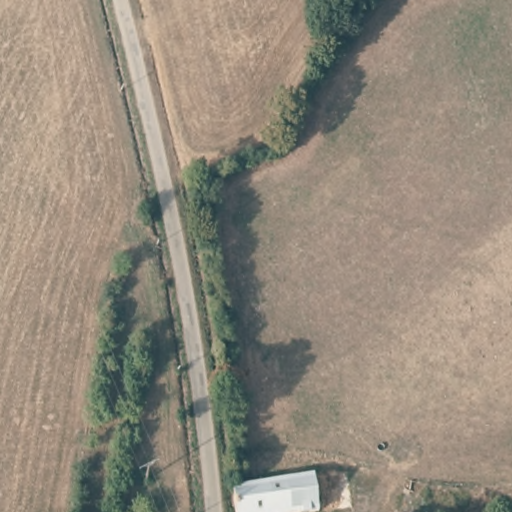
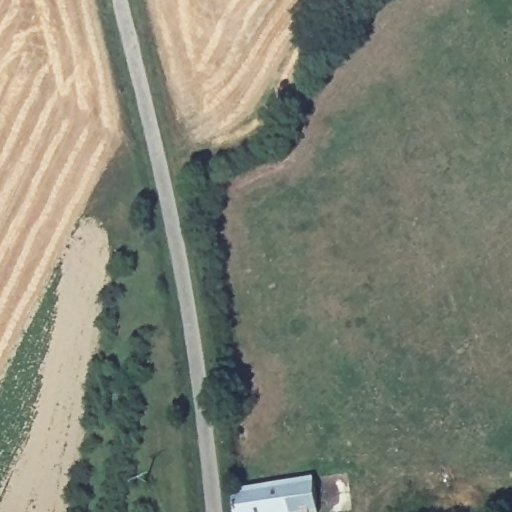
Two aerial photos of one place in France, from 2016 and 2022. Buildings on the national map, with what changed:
unchanged [(314,478),(319,510),(308,512),(237,512),(234,487),(314,478)]

